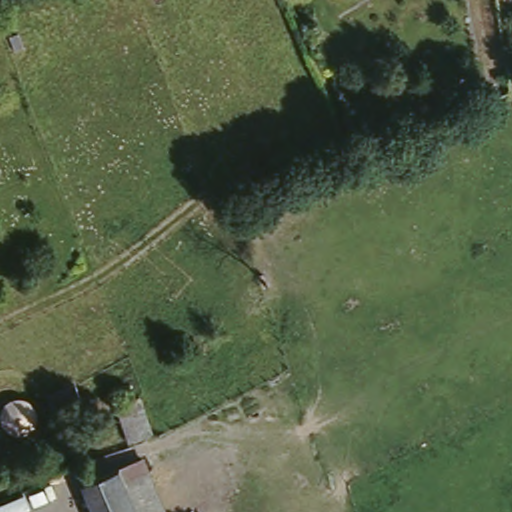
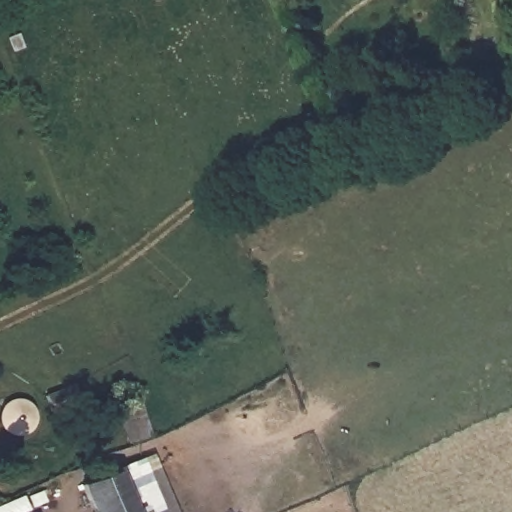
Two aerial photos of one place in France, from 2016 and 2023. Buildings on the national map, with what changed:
unchanged [(75,384),(81,399),(54,411),(47,395),(75,384)]
unchanged [(95,512),(80,478),(120,463),(126,477),(140,512),(95,512)]
unchanged [(145,469),(162,512),(140,512),(126,477),(145,469)]

